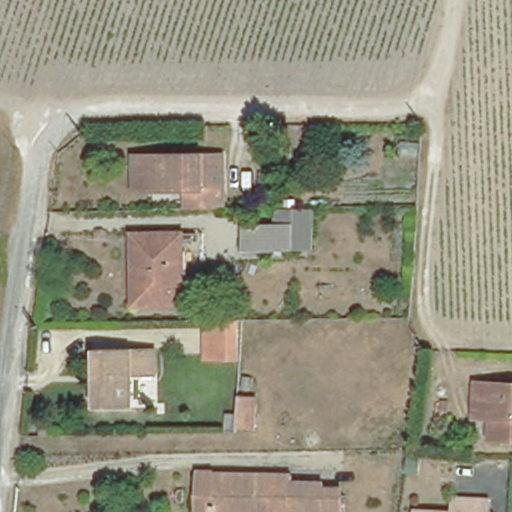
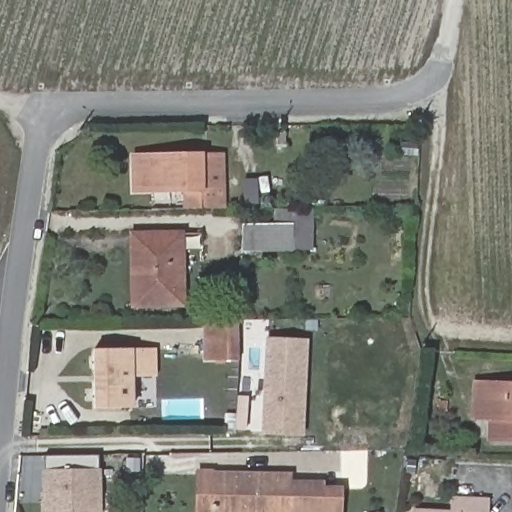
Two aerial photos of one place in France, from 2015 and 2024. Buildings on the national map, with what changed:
unchanged [(187,185),(136,185),(135,149),(199,149),(223,149),(224,162),(225,202),(187,203),(187,185)]
unchanged [(276,224),(276,207),(292,206),(311,206),(311,247),(291,247),(244,247),(244,224),(276,224)]
unchanged [(131,253),(131,232),(183,232),(185,305),(148,305),(133,305),(131,253)]
unchanged [(209,358),(208,320),(238,320),(238,357),(209,358)]
new [(266,337),(311,339),(306,435),(262,433),(266,337)]
unchanged [(94,402),(94,343),(133,343),(156,343),(157,371),(133,371),(134,402),(94,402)]
unchanged [(473,417),(475,381),(512,383),(512,439),(491,438),(491,418),(473,417)]
demolished [(225,431),(225,415),(237,415),(237,396),(259,397),(258,430),(225,431)]
new [(99,455),(101,512),(42,512),(45,456),(99,455)]
unchanged [(342,512),(197,512),(198,477),(217,477),(293,480),(293,487),(326,487),(326,492),(343,492),(342,512)]
unchanged [(452,499),(488,501),(488,512),(451,512),(452,499)]

